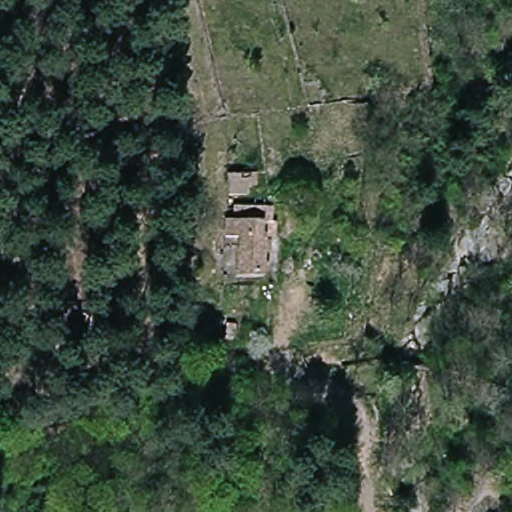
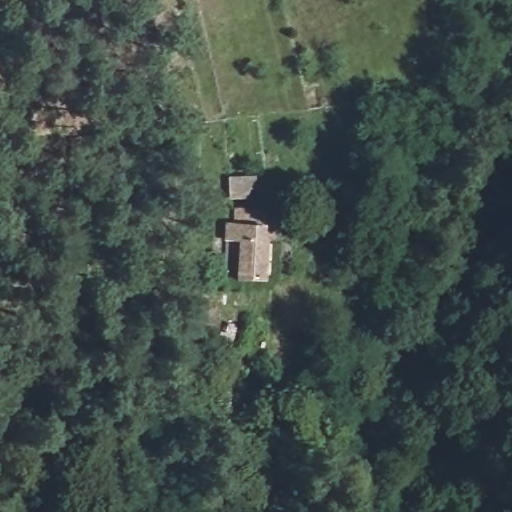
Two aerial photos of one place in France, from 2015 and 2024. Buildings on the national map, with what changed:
unchanged [(223,201),(220,167),(250,164),(254,198),(223,201)]
unchanged [(267,236),(269,277),(224,283),(220,224),(254,220),(255,238),(267,236)]

